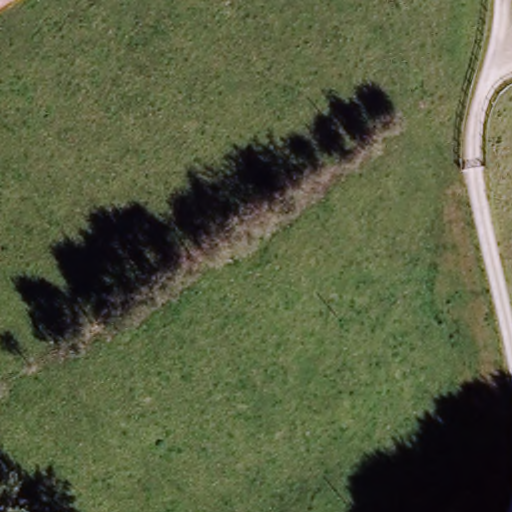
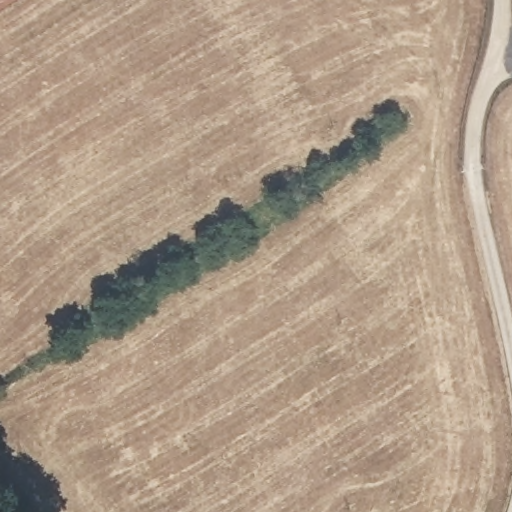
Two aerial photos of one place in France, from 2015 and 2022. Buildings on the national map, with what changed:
unchanged [(0,9),(0,0),(14,0),(0,9)]

